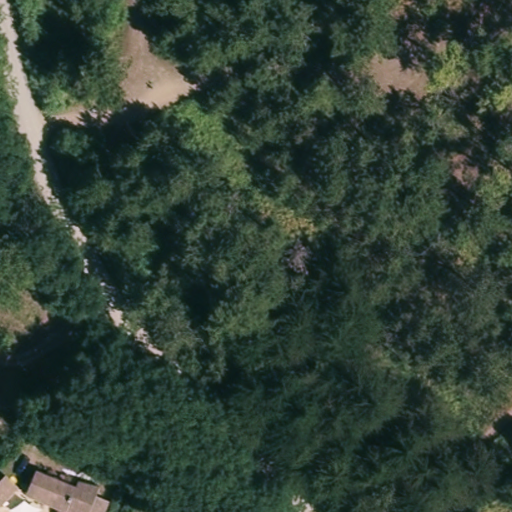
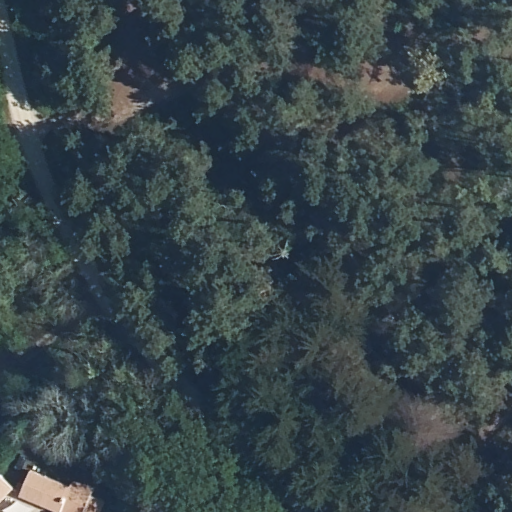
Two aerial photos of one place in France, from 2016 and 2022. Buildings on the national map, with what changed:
unchanged [(86,473),(103,477),(101,486),(113,491),(106,509),(93,506),(91,512),(87,512),(30,490),(39,466),(76,480),(86,473)]
unchanged [(0,493),(0,469),(0,468),(13,478),(0,493)]

